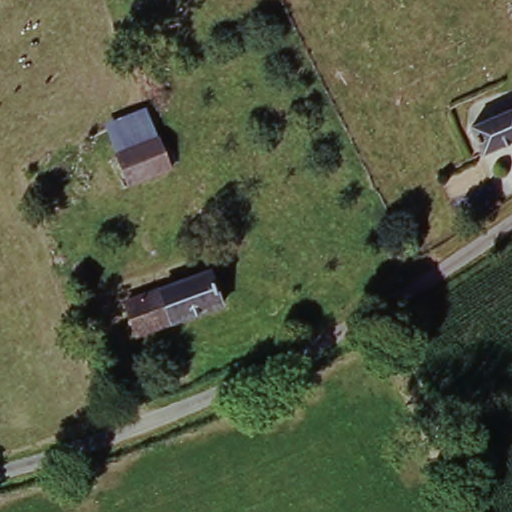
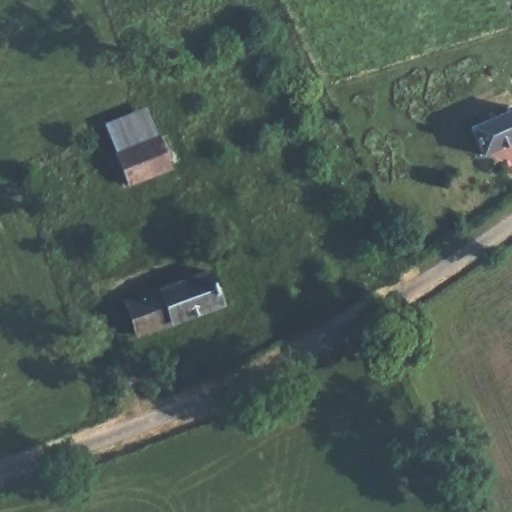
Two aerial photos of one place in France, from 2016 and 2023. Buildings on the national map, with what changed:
unchanged [(170,167),(128,185),(103,124),(142,107),(170,167)]
unchanged [(512,140),(484,153),(472,130),(512,110),(512,140)]
unchanged [(215,275),(227,307),(138,336),(129,304),(215,275)]

